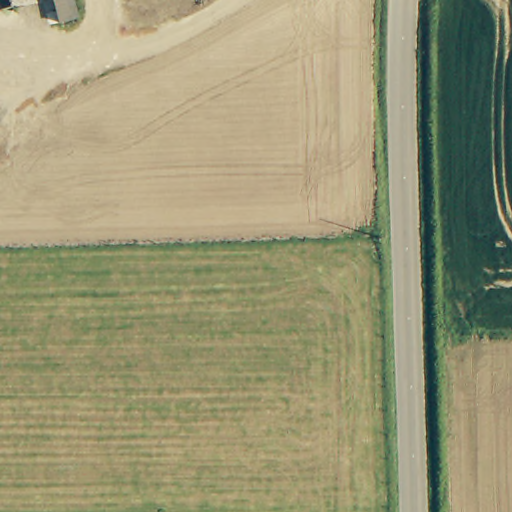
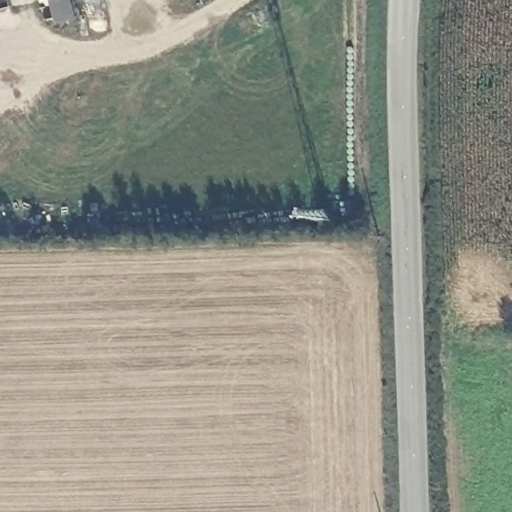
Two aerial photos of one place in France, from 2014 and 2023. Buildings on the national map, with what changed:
unchanged [(62,16),(57,0),(77,0),(81,11),(62,16)]

